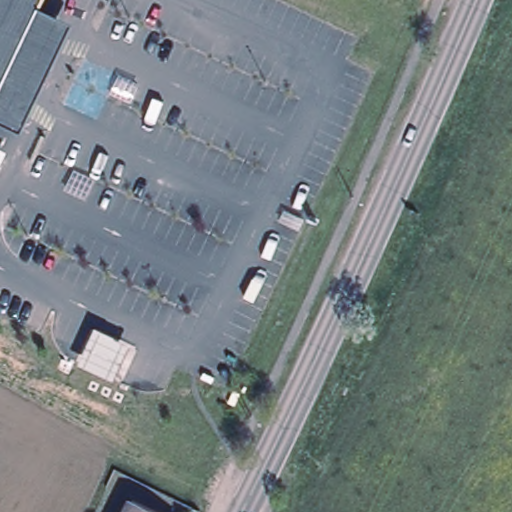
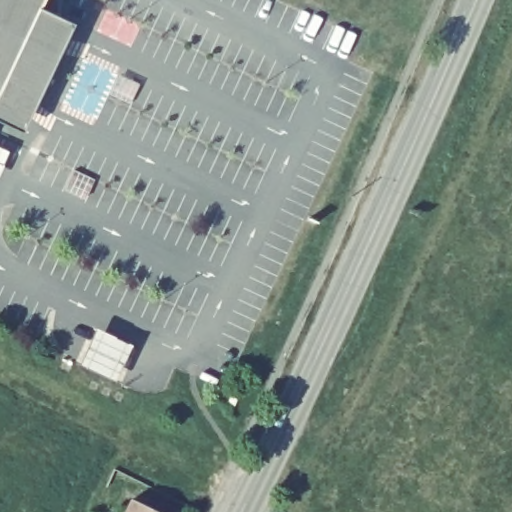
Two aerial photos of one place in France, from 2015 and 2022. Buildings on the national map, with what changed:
unchanged [(36,12),(0,87),(0,0),(42,0),(36,12)]
unchanged [(50,19),(47,42),(38,70),(23,97),(5,115),(0,112),(0,87),(36,12),(50,19)]
unchanged [(148,512),(130,512),(133,505),(148,512)]

